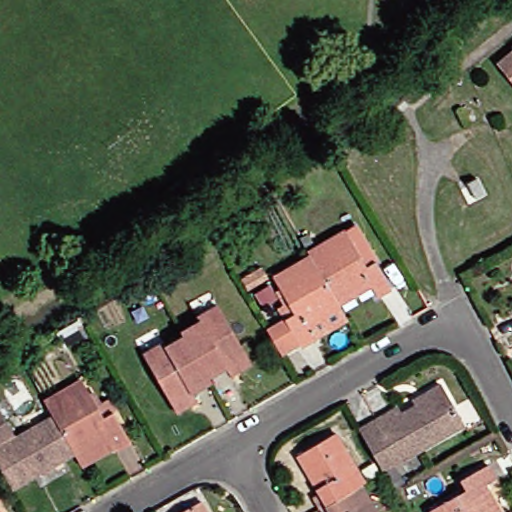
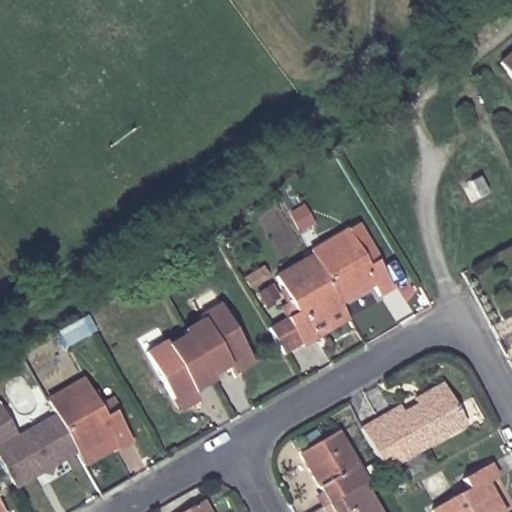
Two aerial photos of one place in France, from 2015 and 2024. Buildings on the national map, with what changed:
unchanged [(512,57),(512,81),(501,67),(512,57)]
unchanged [(384,298),(378,287),(345,306),(317,257),(315,253),(352,232),(361,226),(382,263),(397,290),(384,298)]
unchanged [(290,306),(283,293),(287,290),(280,278),(317,257),(345,306),(354,321),(307,348),(291,321),(285,309),(290,306)]
unchanged [(234,375),(230,368),(211,379),(186,336),(183,332),(202,321),(200,316),(219,305),(246,353),(253,364),(234,375)]
unchanged [(179,413),(172,401),(145,354),(164,343),(167,347),(186,336),(211,379),(213,383),(194,395),(198,402),(179,413)]
unchanged [(81,454),(60,417),(52,403),(89,382),(110,419),(120,413),(136,440),(122,449),(88,468),(82,457),(81,454)]
unchanged [(416,407),(413,400),(442,384),(446,390),(466,427),(383,474),(360,430),(400,408),(404,414),(416,407)]
unchanged [(4,405),(21,433),(0,445),(0,407),(4,405)]
unchanged [(46,474),(25,486),(19,489),(0,456),(0,452),(4,449),(60,417),(81,454),(57,468),(54,477),(46,474)]
unchanged [(300,456),(337,434),(366,484),(362,486),(329,506),(300,456)]
unchanged [(467,482),(494,466),(502,480),(491,487),(505,512),(437,512),(472,491),(467,482)]
unchanged [(329,506),(362,486),(377,512),(324,512),(323,509),(329,506)]
unchanged [(210,512),(201,512),(208,508),(210,512)]
unchanged [(2,512),(0,512),(0,509),(2,512)]

